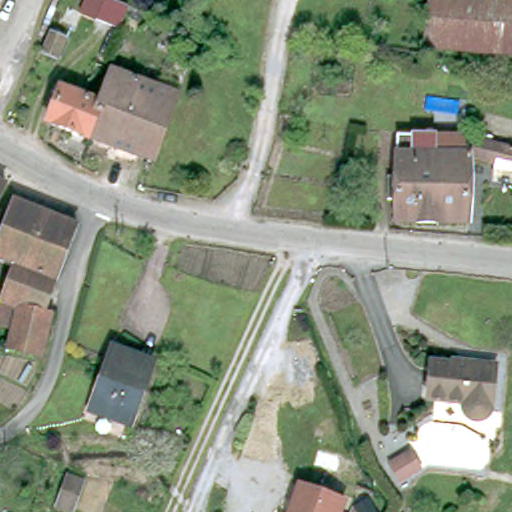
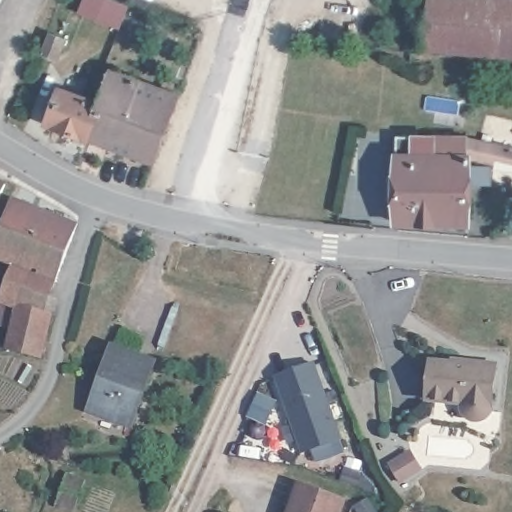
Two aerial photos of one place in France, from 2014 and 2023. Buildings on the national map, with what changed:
unchanged [(119,0),(133,6),(122,27),(100,18),(108,0),(119,0)]
unchanged [(430,0),(512,0),(512,58),(425,50),(430,0)]
unchanged [(67,40),(59,59),(42,52),(50,33),(67,40)]
unchanged [(101,99),(102,100),(116,70),(185,95),(160,162),(87,134),(101,99)]
unchanged [(101,99),(87,134),(52,120),(65,86),(82,93),(101,99)]
unchanged [(432,152),(432,225),(395,224),(395,159),(397,152),(413,152),(413,134),(469,136),(493,143),(512,148),(512,168),(488,162),(470,157),(470,153),(432,152)]
unchanged [(469,226),(432,225),(432,152),(470,153),(470,157),(469,226)]
unchanged [(0,205),(0,173),(12,178),(0,205)]
unchanged [(50,312),(58,314),(46,359),(10,350),(15,329),(0,326),(0,320),(5,301),(17,267),(0,260),(0,248),(18,199),(85,223),(50,312)]
unchanged [(130,426),(90,411),(114,347),(153,362),(130,426)]
unchanged [(502,363),(497,401),(496,404),(494,407),(492,410),(488,411),(485,412),(482,412),(478,412),(475,410),(472,408),(470,405),(469,402),(469,397),(433,393),(437,355),(502,363)]
new [(317,464),(313,450),(302,454),(275,378),(316,363),(342,439),(344,453),(317,464)]
unchanged [(388,464),(409,452),(420,469),(398,482),(388,464)]
new [(367,460),(358,486),(341,480),(349,455),(367,460)]
unchanged [(85,481),(73,512),(70,512),(57,507),(70,475),(85,481)]
unchanged [(298,485),(343,501),(339,512),(289,512),(298,485)]

